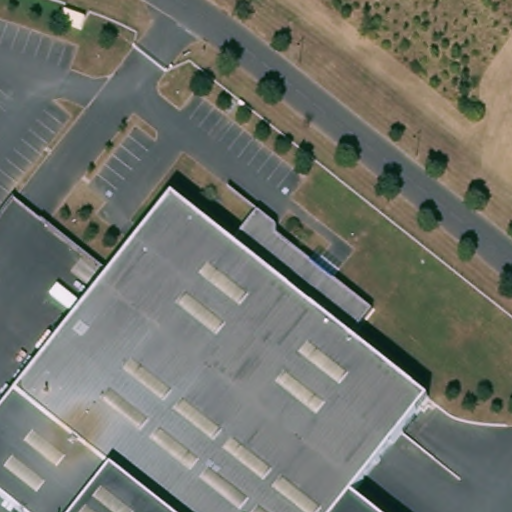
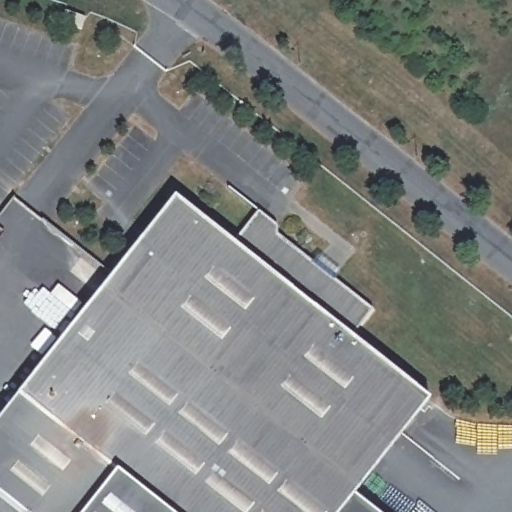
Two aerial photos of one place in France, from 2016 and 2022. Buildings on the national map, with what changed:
unchanged [(232,245),(259,212),(277,226),(276,235),(371,311),(350,338),(428,401),(352,497),(341,512),(166,512),(18,394),(173,197),(232,245)]
unchanged [(0,417),(18,394),(166,512),(24,512),(0,493),(0,417)]
unchanged [(371,512),(341,512),(352,497),(371,512)]

